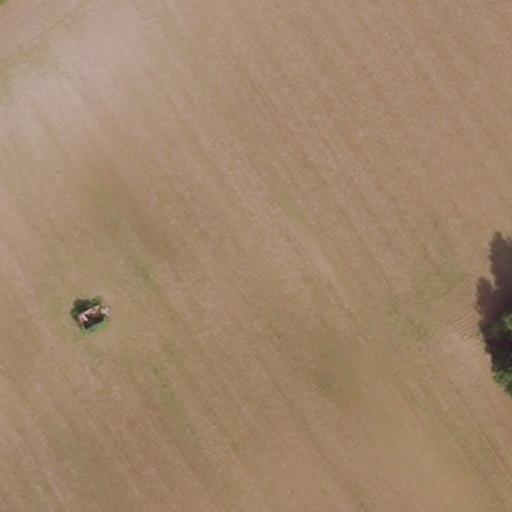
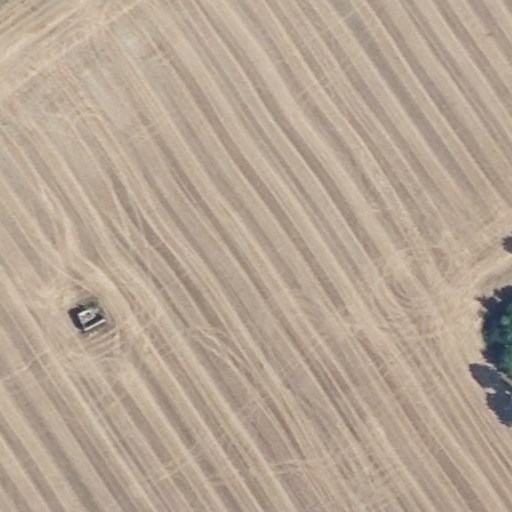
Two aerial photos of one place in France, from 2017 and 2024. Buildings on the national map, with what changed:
unchanged [(90,306),(97,321),(78,331),(70,315),(90,306)]

